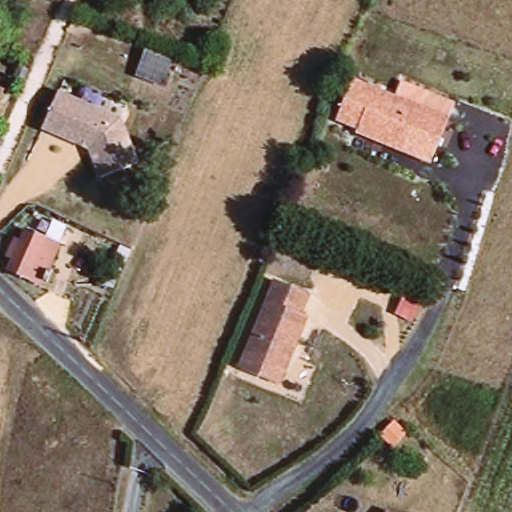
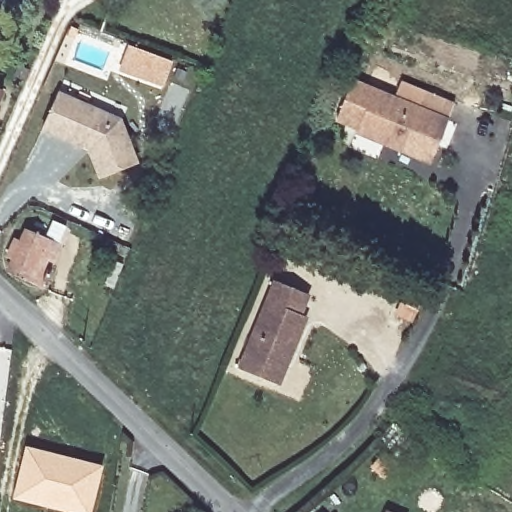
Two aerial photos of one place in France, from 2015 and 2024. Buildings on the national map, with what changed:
unchanged [(174,60),(165,86),(135,76),(145,50),(174,60)]
unchanged [(379,130),(348,117),(364,79),(436,109),(442,95),(465,104),(459,118),(442,160),(396,141),(377,134),(379,130)]
unchanged [(0,118),(0,88),(11,93),(0,118)]
unchanged [(45,125),(61,90),(122,117),(139,160),(104,174),(92,146),(82,141),(45,125)]
unchanged [(51,283),(18,268),(35,229),(57,239),(65,221),(76,226),(68,244),(51,283)]
unchanged [(281,379),(250,366),(286,278),(319,292),(311,311),(318,315),(301,358),(290,383),(281,379)]
new [(24,445),(104,464),(92,512),(63,512),(10,499),(24,445)]
unchanged [(404,478),(387,472),(394,453),(410,460),(404,478)]

